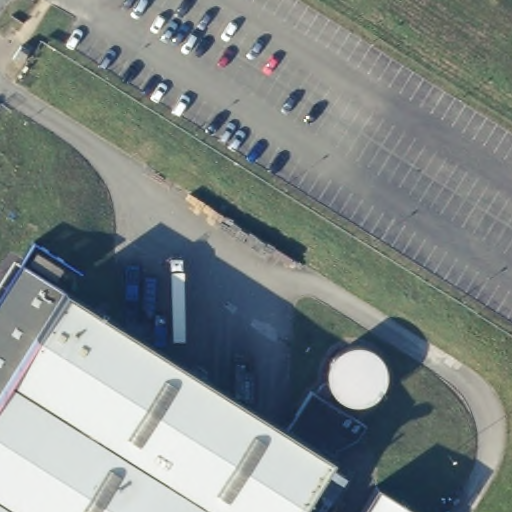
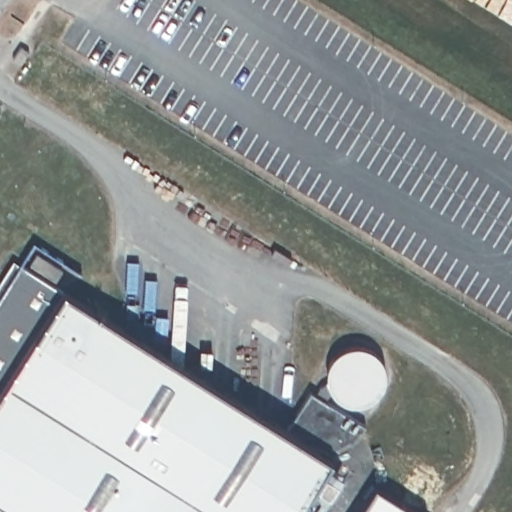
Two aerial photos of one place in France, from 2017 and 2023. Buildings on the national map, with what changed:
unchanged [(21,63),(13,58),(22,45),(30,50),(21,63)]
unchanged [(67,264),(60,275),(35,259),(42,248),(67,264)]
unchanged [(26,258),(70,285),(292,424),(315,391),(355,425),(338,453),(301,512),(0,512),(0,299),(26,258)]
unchanged [(432,512),(360,512),(380,480),(432,512)]

